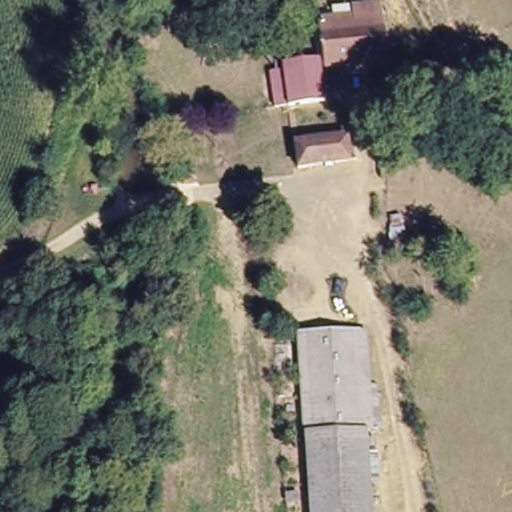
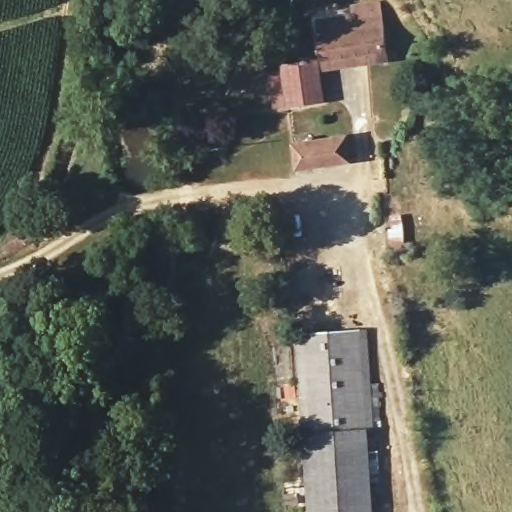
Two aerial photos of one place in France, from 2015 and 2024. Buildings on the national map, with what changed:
unchanged [(384,47),(323,53),(321,25),(320,9),(379,3),(381,19),(384,47)]
unchanged [(266,63),(277,61),(315,55),(317,89),(281,93),(268,95),(266,63)]
unchanged [(297,143),(351,135),(353,160),(301,169),(297,143)]
unchanged [(363,325),(366,385),(375,385),(377,421),(371,422),(372,427),(364,428),(367,512),(311,512),(297,329),(363,325)]

